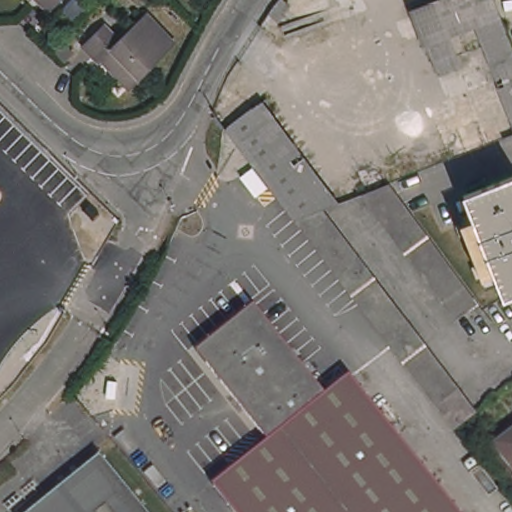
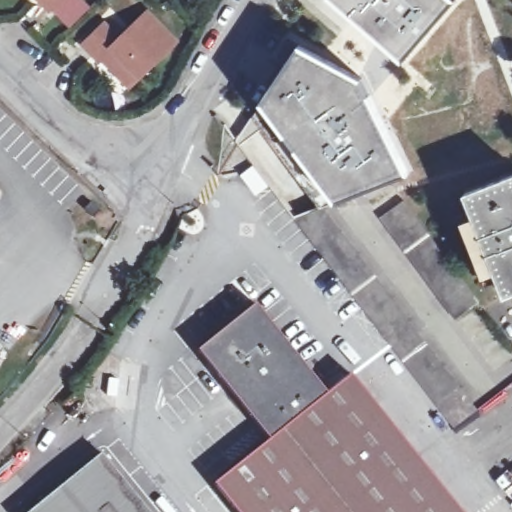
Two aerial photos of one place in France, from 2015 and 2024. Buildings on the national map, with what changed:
unchanged [(50,12),(38,0),(62,0),(50,12)]
new [(403,60),(334,0),(454,0),(403,60)]
demolished [(499,8),(502,18),(482,25),(447,38),(458,69),(445,74),(440,58),(432,61),(413,9),(438,0),(496,0),(499,8)]
unchanged [(111,73),(109,75),(98,64),(95,66),(81,51),(99,34),(113,49),(143,20),(170,47),(128,90),(111,73)]
new [(302,46),(363,79),(409,172),(386,179),(357,190),(337,202),(263,102),(302,46)]
unchanged [(386,179),(481,306),(475,311),(470,304),(451,316),(357,190),(386,179)]
unchanged [(506,297),(466,196),(512,179),(512,295),(506,297)]
unchanged [(456,430),(296,220),(298,219),(321,211),(324,209),(479,413),(456,430)]
unchanged [(270,441),(200,351),(257,306),(328,395),(352,376),(461,512),(237,512),(215,485),(270,441)]
unchanged [(512,438),(512,463),(500,447),(512,438)]
unchanged [(150,512),(32,512),(103,456),(150,512)]

